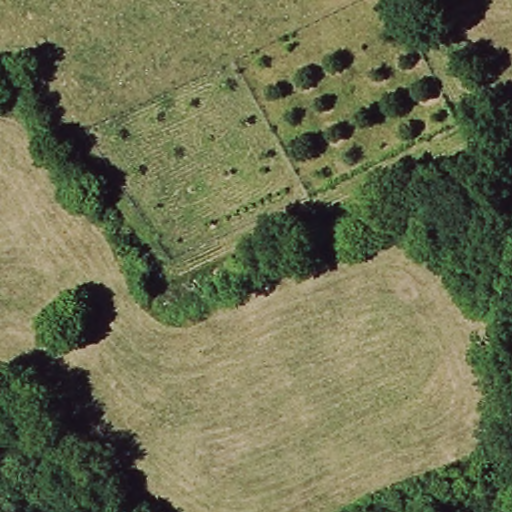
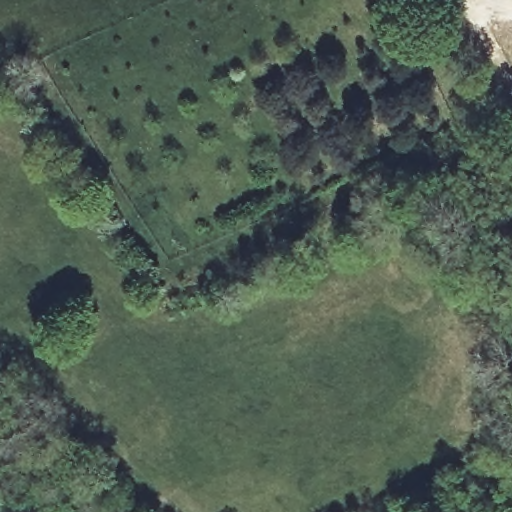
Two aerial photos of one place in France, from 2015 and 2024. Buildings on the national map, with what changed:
[]

